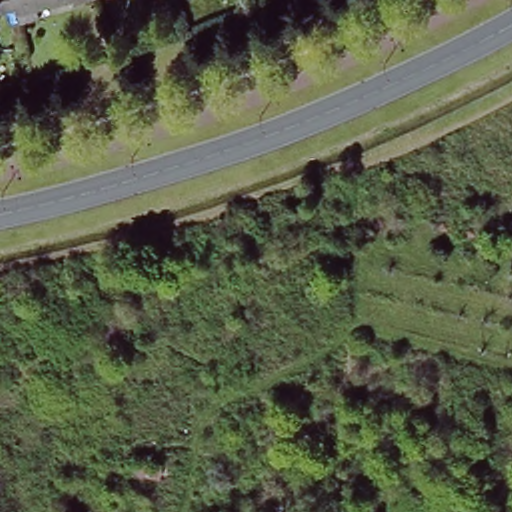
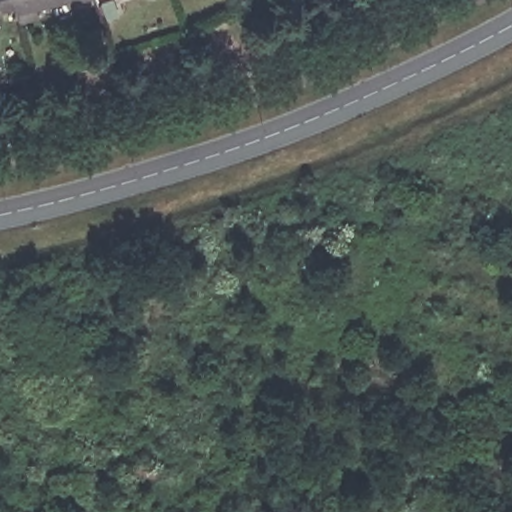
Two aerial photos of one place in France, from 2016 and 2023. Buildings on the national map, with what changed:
unchanged [(14,13),(0,16),(0,0),(11,0),(14,13)]
unchanged [(93,0),(76,5),(75,1),(35,11),(35,16),(15,20),(14,13),(11,0),(93,0)]

